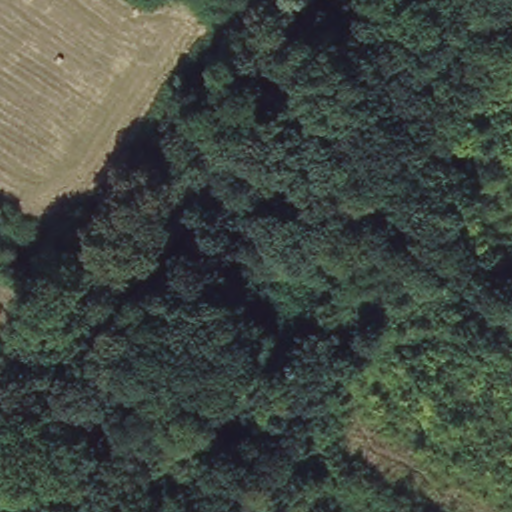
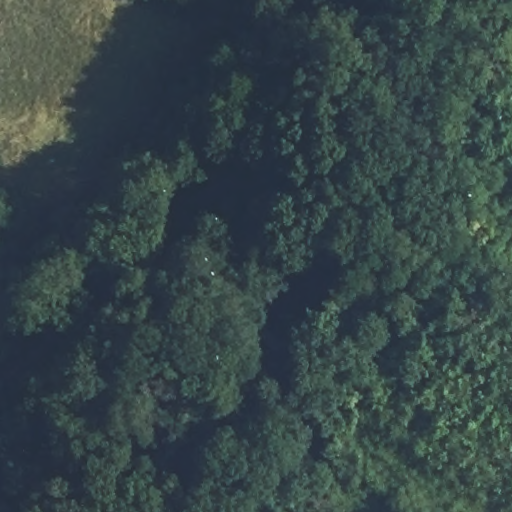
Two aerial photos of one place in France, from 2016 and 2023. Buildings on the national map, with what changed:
unchanged [(253,262),(247,268),(238,263),(244,255),(253,262)]
unchanged [(16,512),(11,512),(14,509),(16,512)]

